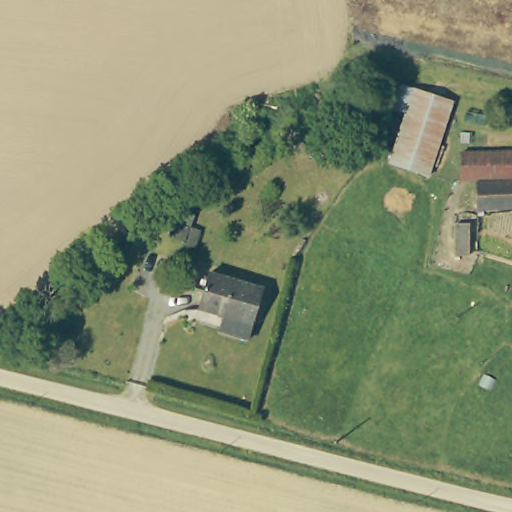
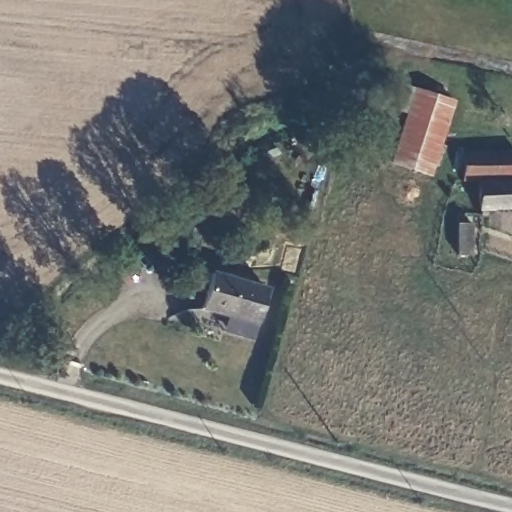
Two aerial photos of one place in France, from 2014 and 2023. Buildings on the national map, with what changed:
unchanged [(457,101),(431,175),(390,160),(384,158),(389,144),(397,147),(410,113),(395,106),(405,81),(457,101)]
unchanged [(512,184),(486,184),(467,184),(468,150),(512,152),(512,184)]
unchanged [(486,184),(512,184),(512,208),(486,208),(486,184)]
unchanged [(272,281),(264,318),(204,305),(209,268),(272,281)]

